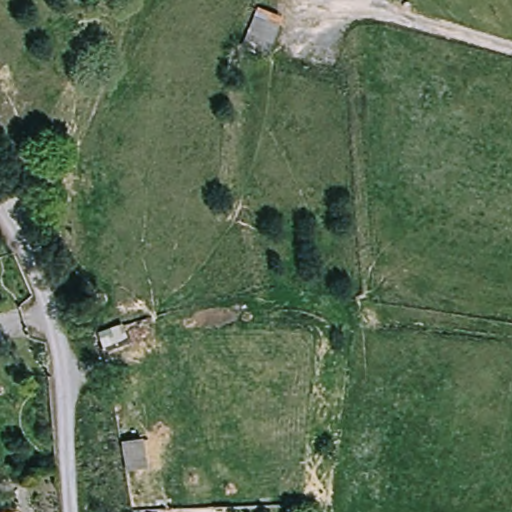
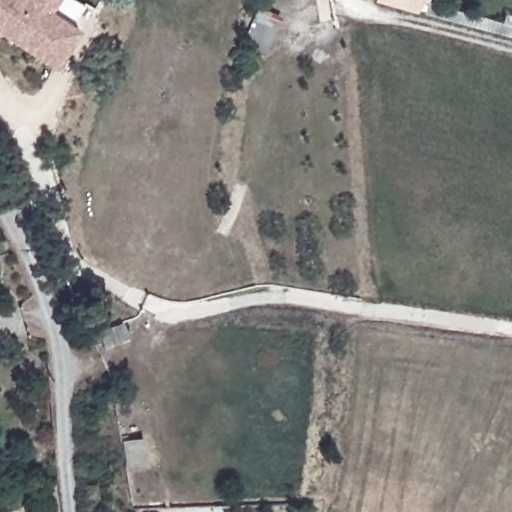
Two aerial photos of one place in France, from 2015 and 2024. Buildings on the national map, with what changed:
new [(55,66),(0,32),(0,0),(56,0),(51,7),(82,25),(55,66)]
unchanged [(271,46),(249,40),(259,4),(289,12),(271,46)]
unchanged [(8,512),(0,512),(0,509),(7,508),(8,512)]

